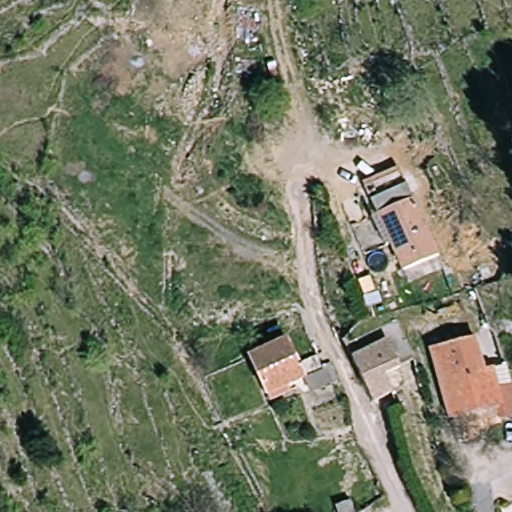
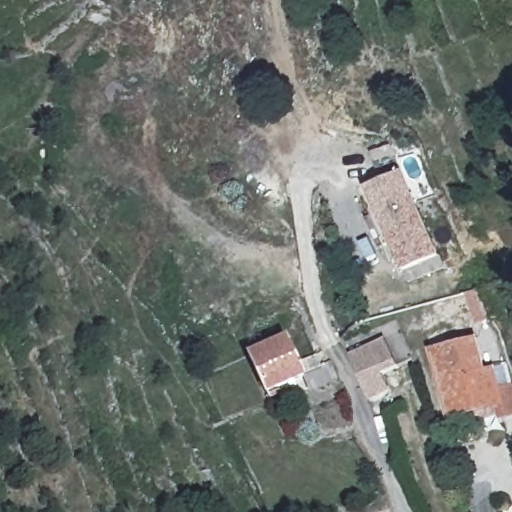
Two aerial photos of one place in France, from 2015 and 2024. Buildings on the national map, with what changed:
unchanged [(377,216),(362,181),(398,165),(413,195),(377,216)]
unchanged [(443,268),(408,283),(396,255),(374,217),(413,195),(444,248),(412,267),(439,251),(443,268)]
unchanged [(387,372),(397,393),(375,403),(353,355),(405,331),(417,358),(387,372)]
unchanged [(430,346),(475,334),(485,369),(494,366),(504,399),(449,415),(430,346)]
unchanged [(269,394),(248,355),(284,335),(296,357),(315,347),(324,364),(269,394)]
unchanged [(512,379),(512,416),(500,419),(498,417),(458,428),(454,420),(450,420),(449,415),(504,399),(494,366),(507,361),(512,379)]

